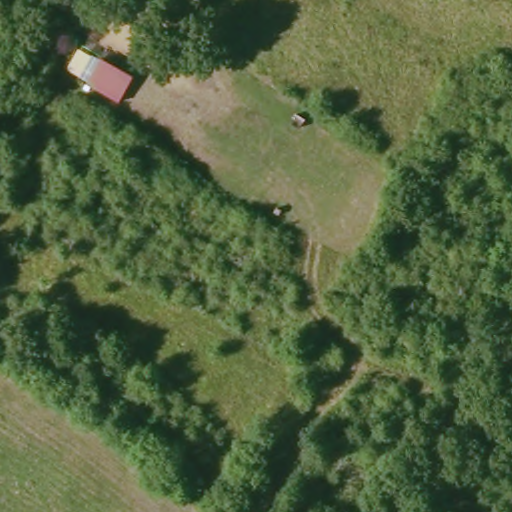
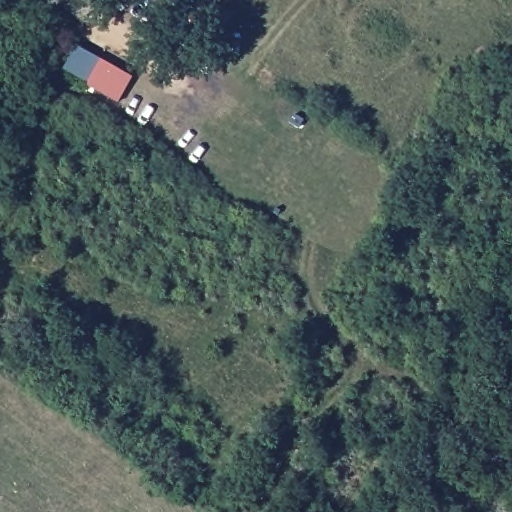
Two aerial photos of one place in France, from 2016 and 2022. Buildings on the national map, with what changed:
unchanged [(104,58),(139,78),(126,102),(91,88),(104,58)]

